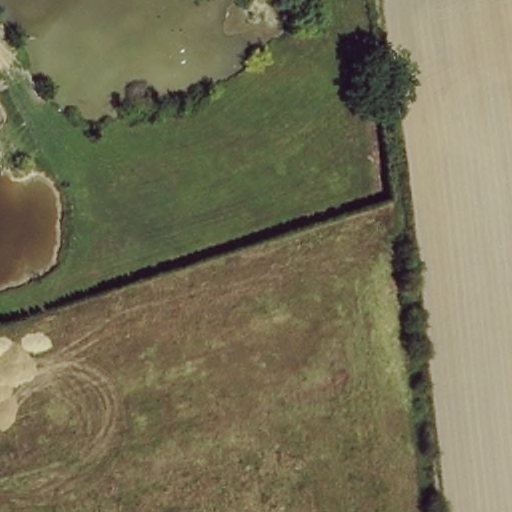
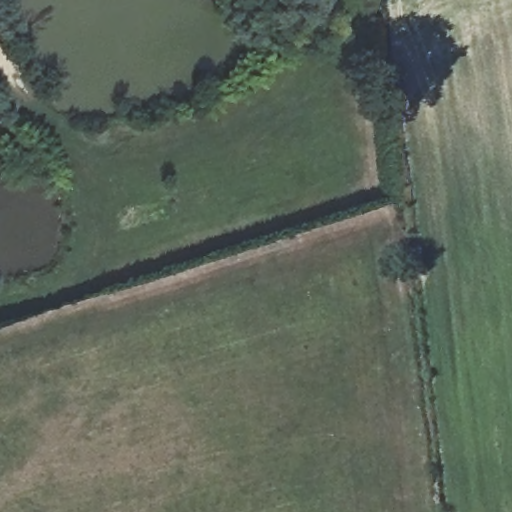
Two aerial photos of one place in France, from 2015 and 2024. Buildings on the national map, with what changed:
[]

